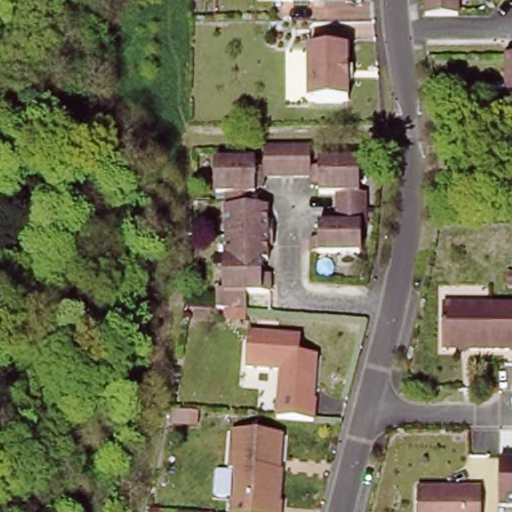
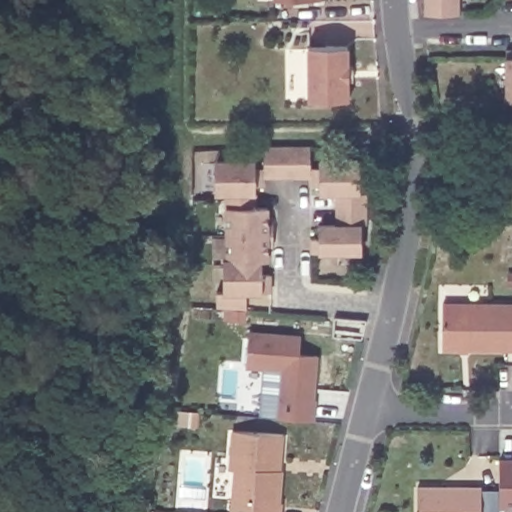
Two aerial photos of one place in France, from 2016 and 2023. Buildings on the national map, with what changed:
unchanged [(425,0),(457,0),(457,14),(425,12),(425,0)]
unchanged [(308,47),(346,46),(346,105),(309,105),(308,47)]
unchanged [(505,56),(512,56),(512,104),(505,103),(505,56)]
unchanged [(306,144),(307,178),(265,177),(266,142),(306,144)]
unchanged [(257,160),(258,204),(269,200),(263,305),(220,305),(224,194),(212,194),(213,156),(257,160)]
unchanged [(370,156),(365,257),(315,256),(316,221),(336,223),(340,196),(318,195),(320,159),(370,156)]
unchanged [(444,347),(444,302),(512,303),(512,348),(444,347)]
unchanged [(276,368),(243,365),(246,329),(297,334),(295,350),(315,353),(311,385),(307,384),(306,398),(313,399),(312,418),(272,414),(276,368)]
unchanged [(227,466),(232,428),(281,432),(280,458),(272,458),(272,466),(281,468),(278,500),(281,500),(280,512),(229,512),(233,467),(227,466)]
unchanged [(499,512),(500,466),(512,466),(512,512),(499,512)]
unchanged [(478,487),(478,512),(413,512),(414,486),(478,487)]

